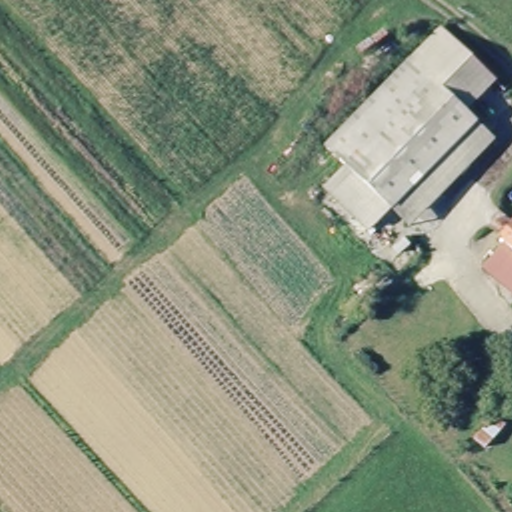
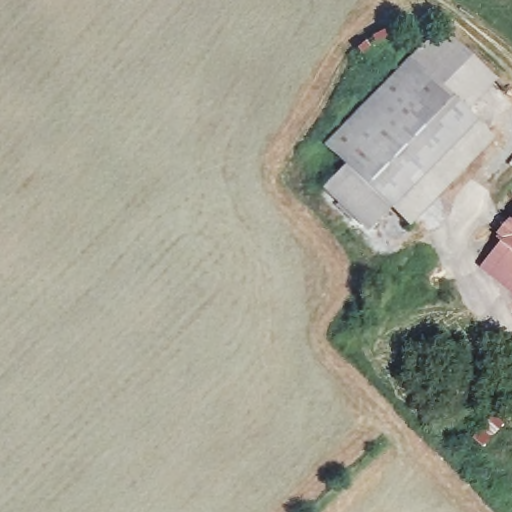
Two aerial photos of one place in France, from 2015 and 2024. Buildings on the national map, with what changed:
unchanged [(436,28),(494,77),(465,110),(408,60),(436,28)]
unchanged [(326,195),(348,169),(327,152),(408,60),(465,110),(475,118),(397,210),(376,235),(326,195)]
unchanged [(495,134),(417,227),(397,210),(475,118),(495,134)]
unchanged [(503,248),(512,237),(512,255),(507,251),(503,248)]
unchanged [(507,251),(512,255),(512,296),(486,275),(507,251)]

